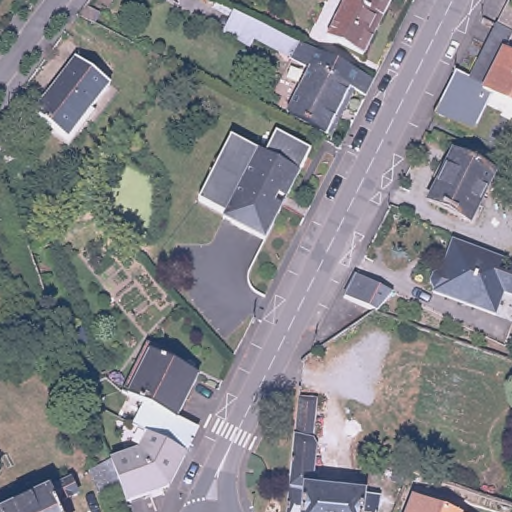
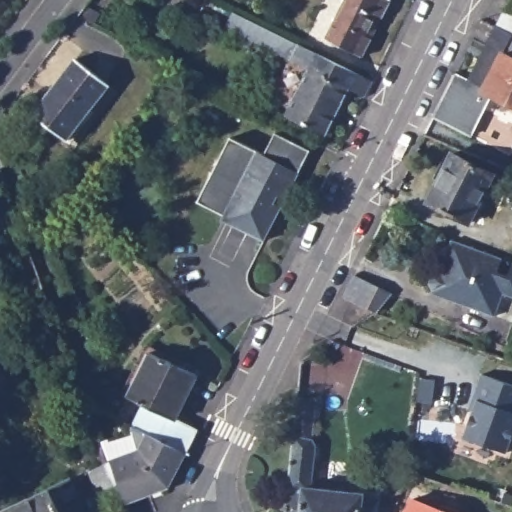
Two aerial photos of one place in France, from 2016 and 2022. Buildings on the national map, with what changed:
unchanged [(362,53),(327,36),(345,0),(390,0),(382,14),(371,35),(362,53)]
unchanged [(86,5),(101,12),(96,23),(79,15),(86,5)]
unchanged [(486,94),(496,76),(478,67),(497,31),(510,6),(512,7),(512,107),(492,97),(486,94)]
unchanged [(373,80),(366,96),(348,87),(340,104),(342,106),(338,115),(336,115),(326,131),(288,112),(311,67),(261,41),(257,48),(239,39),(250,18),(268,27),(300,43),(373,80)]
unchanged [(110,82),(67,138),(35,113),(76,58),(110,82)]
unchanged [(468,85),(478,67),(496,76),(486,94),(492,97),(471,139),(435,121),(440,111),(456,79),(468,85)]
unchanged [(13,196),(0,164),(0,132),(12,127),(23,155),(10,159),(24,193),(13,196)]
unchanged [(310,151),(264,242),(222,222),(224,216),(199,204),(231,139),(265,156),(276,135),(302,149),(305,148),(310,151)]
unchanged [(496,173),(471,221),(429,201),(439,180),(435,177),(445,158),(450,160),(454,152),(496,173)]
unchanged [(512,187),(512,198),(508,196),(512,187)]
unchanged [(497,273),(507,277),(512,265),(512,297),(502,294),(495,316),(432,294),(433,291),(429,283),(431,275),(440,272),(451,241),(502,259),(497,273)]
unchanged [(394,299),(375,317),(345,302),(355,281),(394,299)]
unchanged [(150,437),(135,429),(146,405),(125,393),(145,352),(199,377),(177,419),(200,430),(187,456),(150,437)]
new [(475,398),(484,372),(512,382),(512,443),(509,451),(466,436),(475,409),(471,408),(475,398)]
unchanged [(299,396),(317,398),(314,440),(316,446),(313,488),(365,493),(367,495),(380,496),(378,512),(288,512),(296,424),(299,396)]
unchanged [(135,455),(143,453),(150,437),(187,456),(181,468),(170,489),(150,496),(149,496),(127,503),(122,491),(101,500),(90,474),(102,469),(94,445),(105,441),(112,462),(132,456),(135,455)]
unchanged [(86,494),(62,505),(65,512),(5,512),(79,477),(86,494)]
unchanged [(461,512),(410,512),(415,500),(442,509),(445,505),(461,511),(461,512)]

